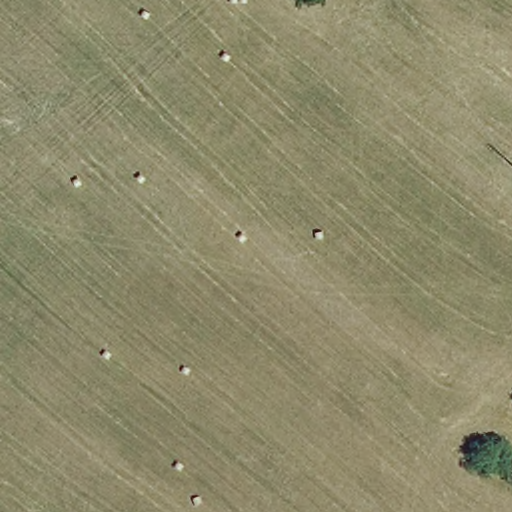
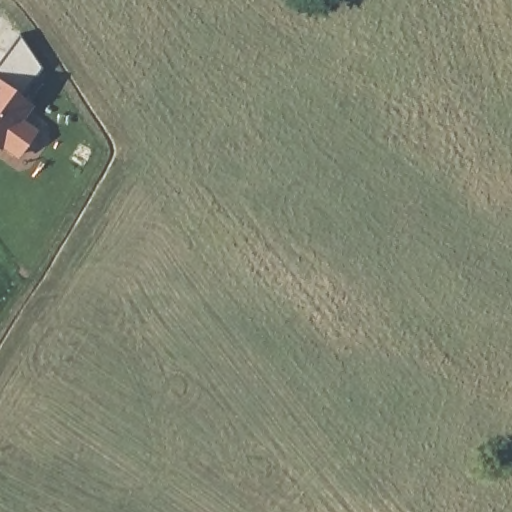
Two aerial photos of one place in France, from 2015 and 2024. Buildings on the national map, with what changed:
new [(19,95),(34,107),(23,123),(38,134),(18,161),(3,151),(0,154),(0,64),(18,37),(40,69),(19,95)]

